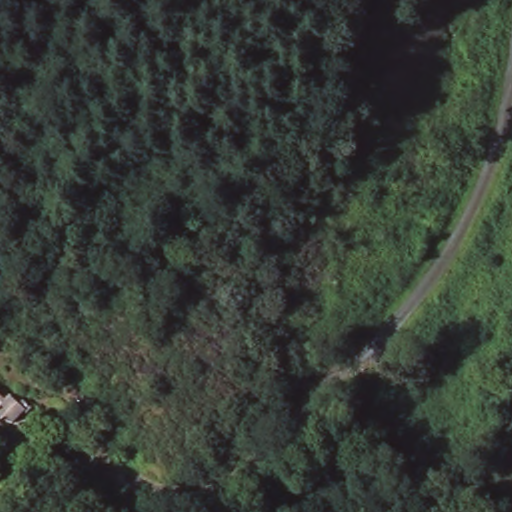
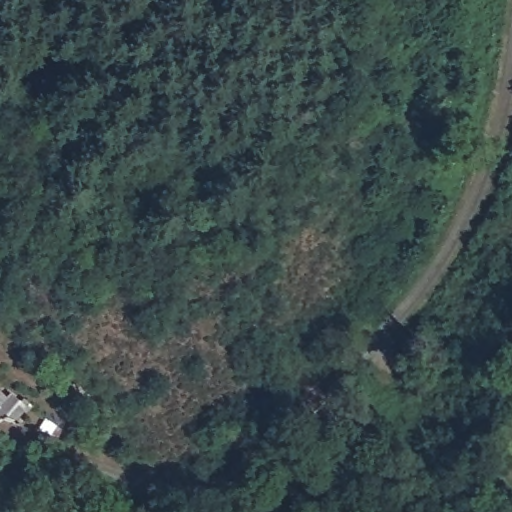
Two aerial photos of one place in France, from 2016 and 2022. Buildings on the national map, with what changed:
unchanged [(11,390),(25,398),(26,406),(14,423),(0,420),(0,391),(6,395),(11,390)]

